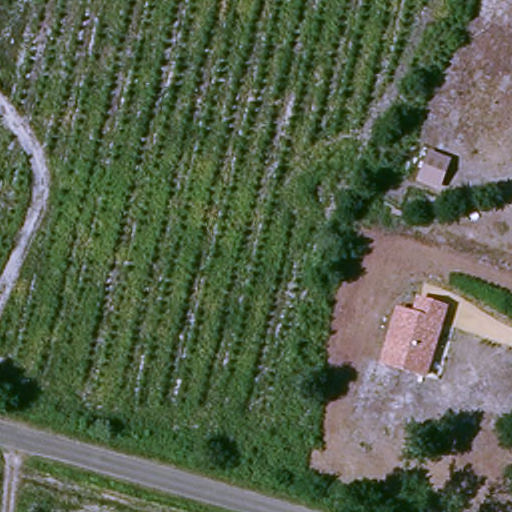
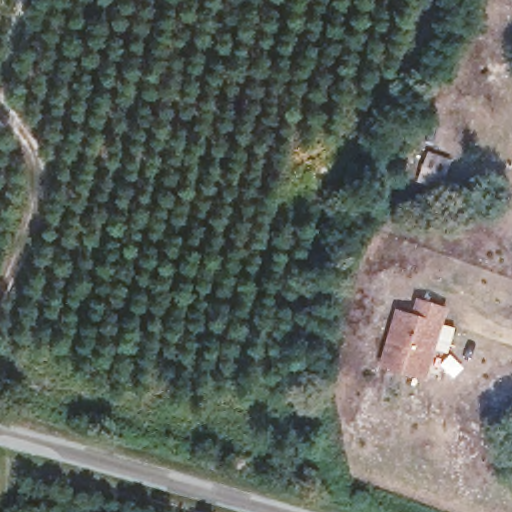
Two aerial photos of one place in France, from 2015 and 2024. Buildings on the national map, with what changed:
unchanged [(454,161),(441,192),(416,182),(430,151),(454,161)]
unchanged [(446,309),(426,377),(382,364),(397,311),(415,316),(418,301),(446,309)]

